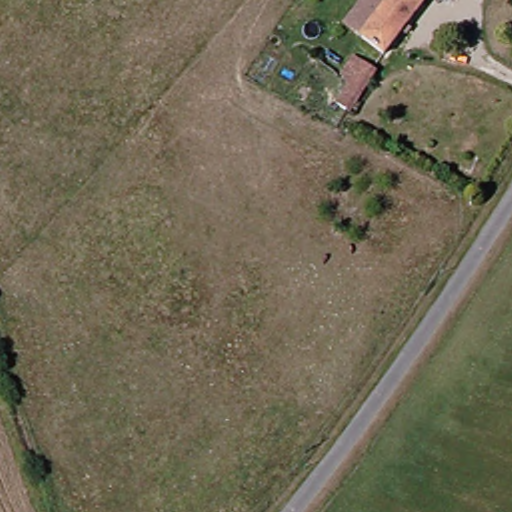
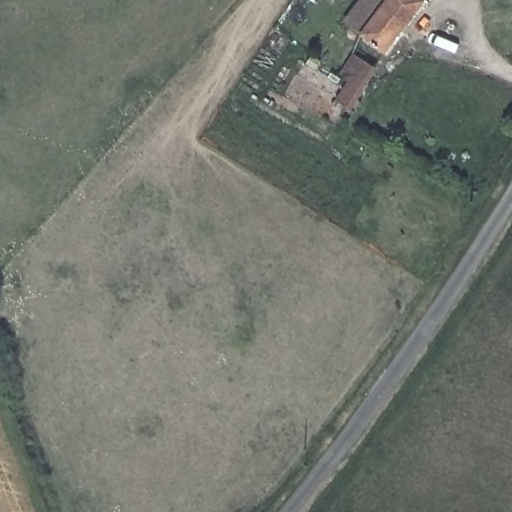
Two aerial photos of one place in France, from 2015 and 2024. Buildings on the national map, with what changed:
unchanged [(369,0),(420,0),(379,54),(364,42),(354,34),(376,5),(369,0)]
unchanged [(335,102),(349,82),(346,79),(361,60),(375,69),(347,110),(335,102)]

